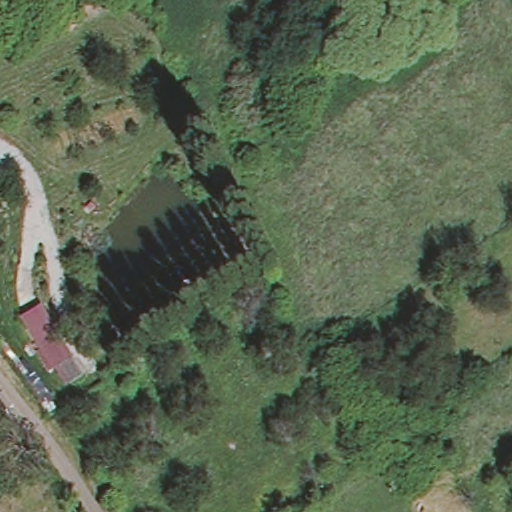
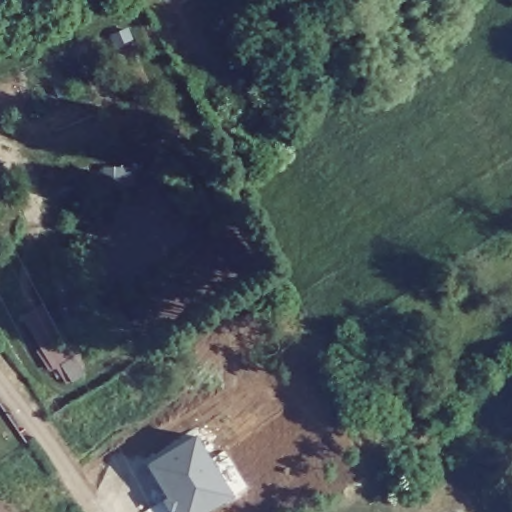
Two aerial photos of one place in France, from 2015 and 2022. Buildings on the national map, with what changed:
unchanged [(86,370),(68,380),(56,363),(50,367),(40,350),(35,352),(15,317),(42,300),(86,370)]
new [(198,437),(235,498),(211,512),(177,512),(149,465),(198,437)]

